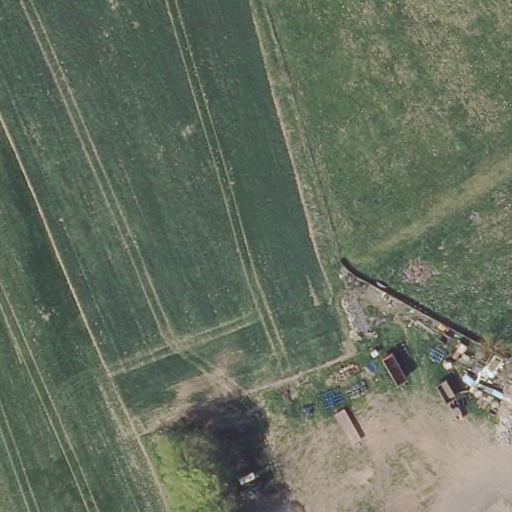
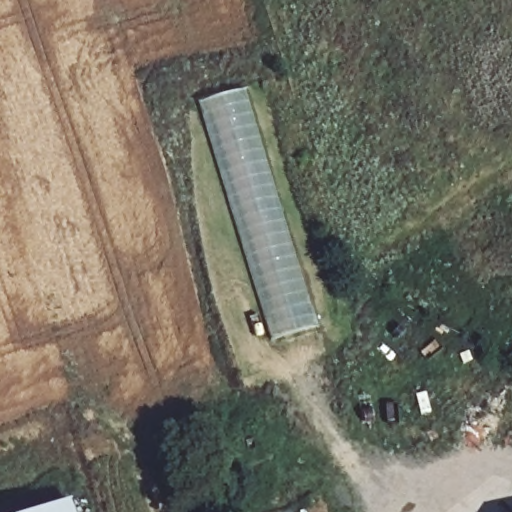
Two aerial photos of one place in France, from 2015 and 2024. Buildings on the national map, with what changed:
new [(317,332),(269,346),(195,105),(245,90),(317,332)]
unchanged [(505,362),(512,357),(512,366),(505,362)]
new [(30,512),(69,500),(73,512),(30,512)]

